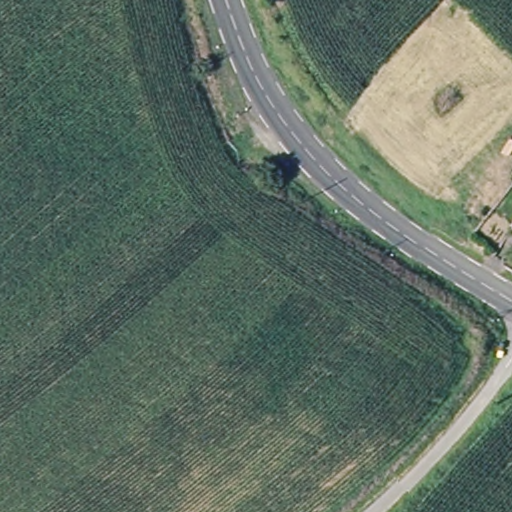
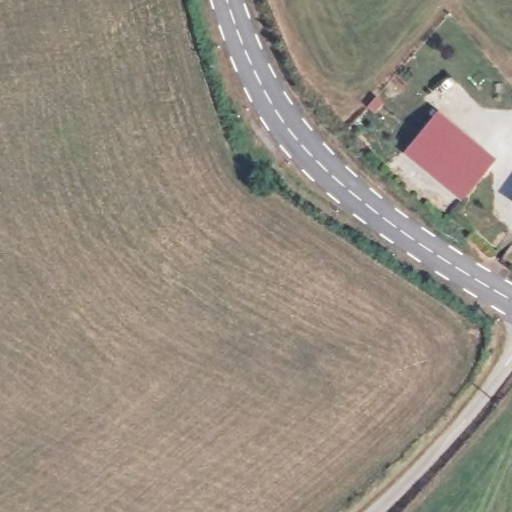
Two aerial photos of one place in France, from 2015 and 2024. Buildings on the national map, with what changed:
new [(496,157),(461,201),(402,154),(437,110),(496,157)]

